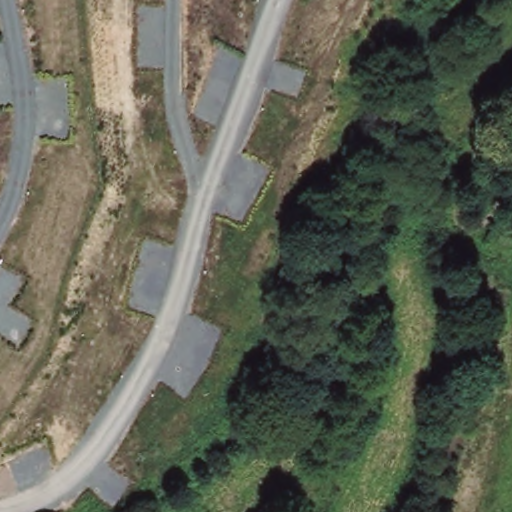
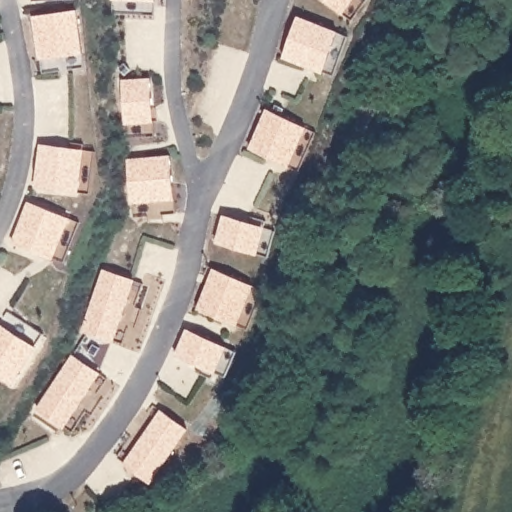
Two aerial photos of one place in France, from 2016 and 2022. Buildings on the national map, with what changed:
new [(154,0),(154,1),(125,0),(154,0)]
new [(327,0),(353,0),(343,13),(327,0)]
new [(324,72),(283,58),(297,15),(338,30),(324,72)]
new [(123,124),(120,80),(149,78),(151,122),(123,124)]
new [(288,164),(249,149),(266,108),(308,127),(288,164)]
new [(78,190),(35,186),(40,144),(85,148),(78,190)]
new [(130,203),(126,159),(168,155),(173,198),(130,203)]
new [(53,257),(13,241),(28,201),(71,218),(53,257)]
new [(260,253),(216,244),(223,213),(267,225),(260,253)]
new [(240,322),(198,308),(213,267),(254,283),(240,322)]
new [(80,331),(102,270),(133,280),(112,341),(80,331)]
new [(220,372),(176,354),(187,327),(229,345),(220,372)]
new [(36,409),(71,354),(100,374),(63,428),(36,409)]
new [(151,480),(124,463),(162,409),(190,427),(151,480)]

